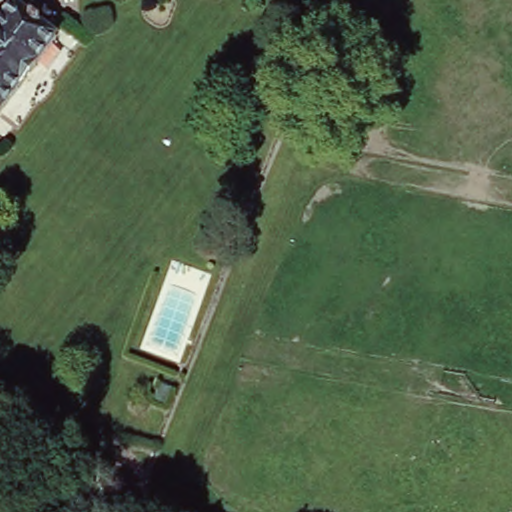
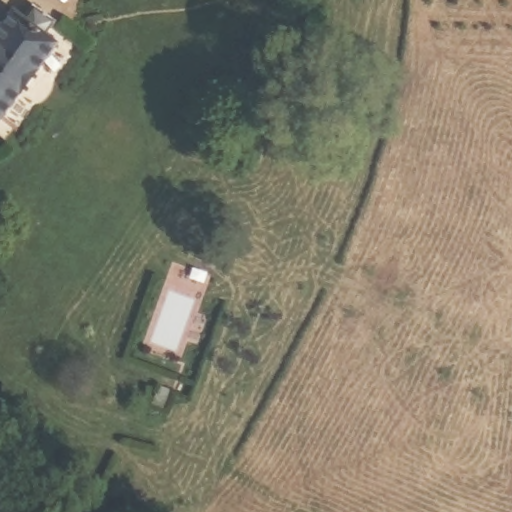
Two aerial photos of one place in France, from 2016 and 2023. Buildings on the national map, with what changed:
unchanged [(24,11),(31,0),(39,0),(56,13),(46,27),(55,35),(0,111),(0,19),(12,3),(24,11)]

